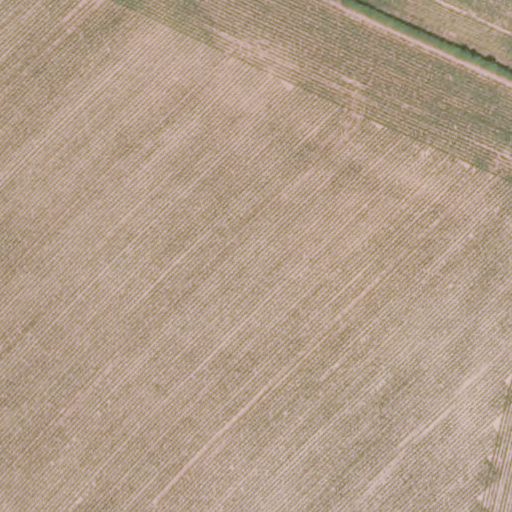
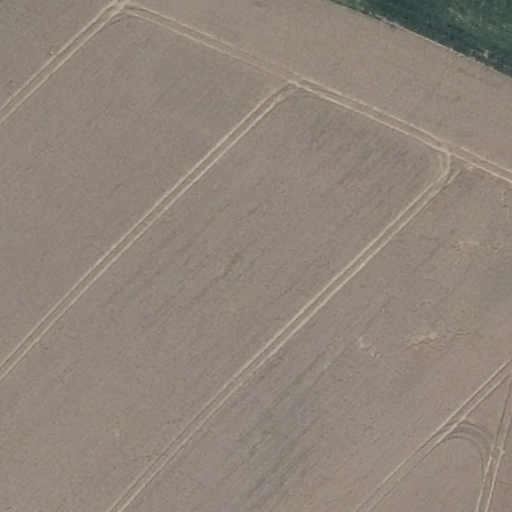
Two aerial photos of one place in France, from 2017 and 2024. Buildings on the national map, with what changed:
[]

